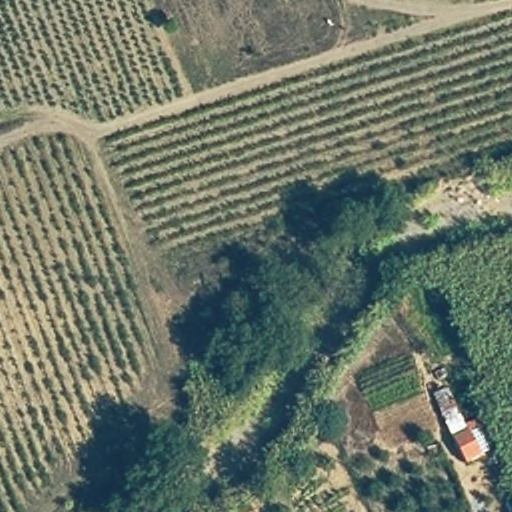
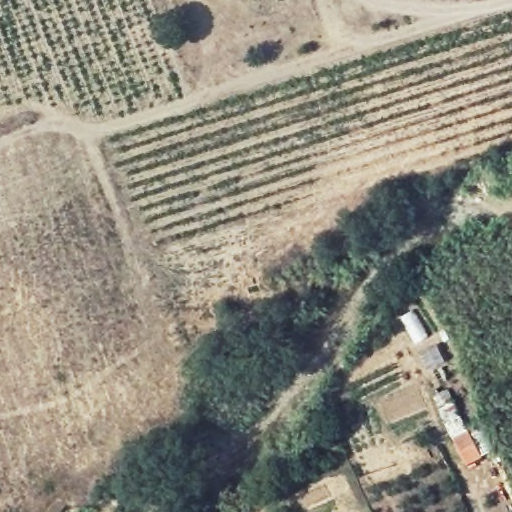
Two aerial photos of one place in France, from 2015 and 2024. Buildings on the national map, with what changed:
unchanged [(465,425),(478,420),(490,446),(478,451),(482,459),(462,467),(431,397),(449,389),(465,425)]

